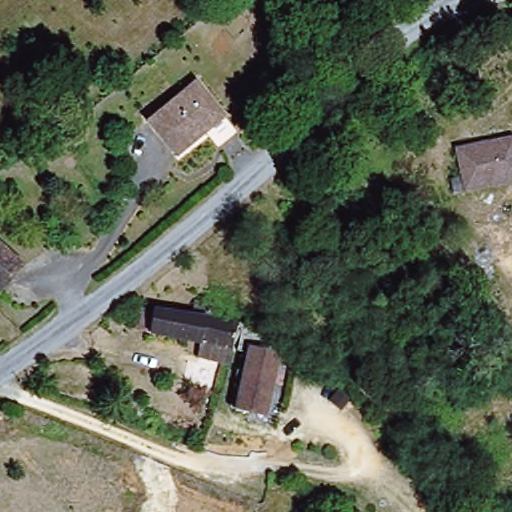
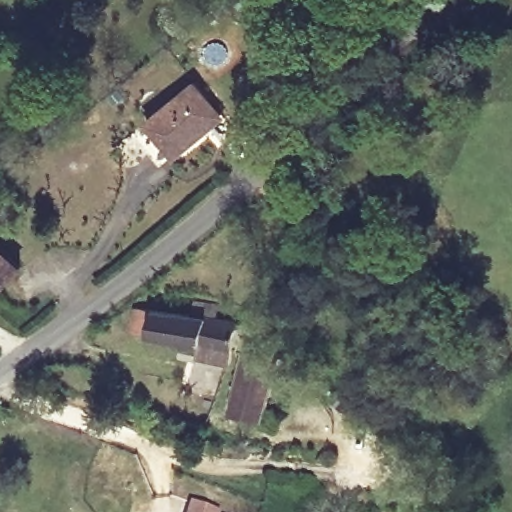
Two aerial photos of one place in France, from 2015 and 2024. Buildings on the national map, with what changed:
unchanged [(213,127),(180,153),(151,118),(200,78),(224,108),(229,113),(213,127)]
demolished [(512,136),(512,178),(468,186),(460,146),(512,136)]
unchanged [(28,261),(5,287),(0,282),(0,236),(28,261)]
unchanged [(204,341),(153,331),(158,303),(242,320),(233,363),(201,356),(204,341)]
unchanged [(251,345),(277,351),(283,351),(269,413),(238,407),(239,402),(251,345)]

